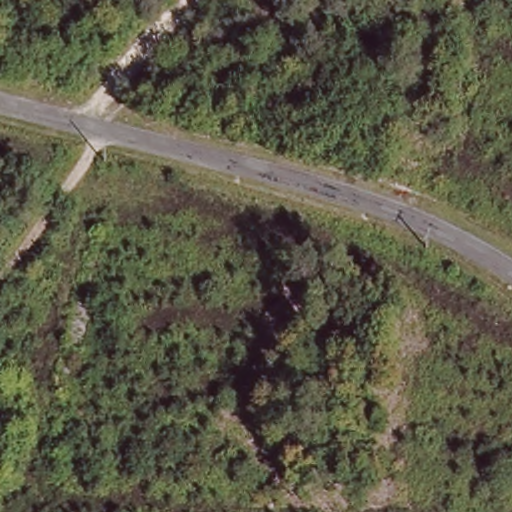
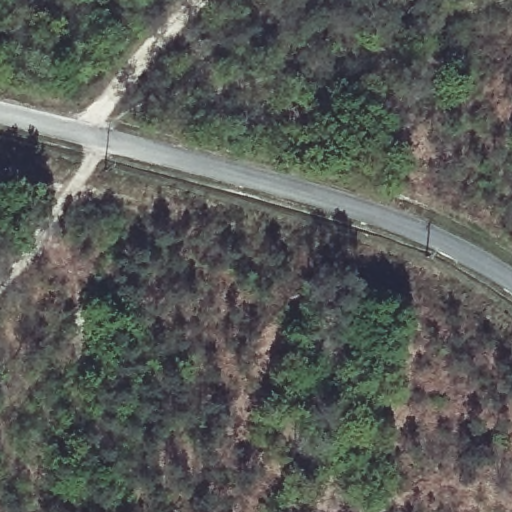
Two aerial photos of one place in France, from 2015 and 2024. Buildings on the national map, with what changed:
unchanged [(111,173),(124,178),(119,190),(106,185),(111,173)]

